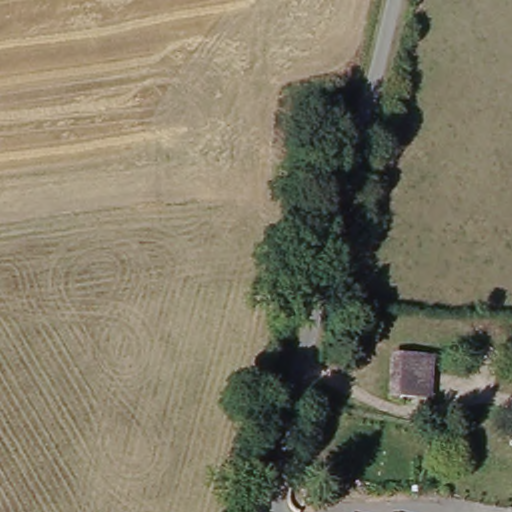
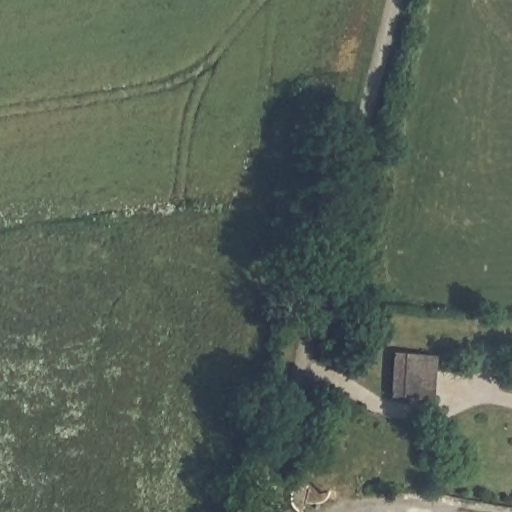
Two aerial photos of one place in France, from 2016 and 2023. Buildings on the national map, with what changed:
unchanged [(390,401),(393,358),(439,360),(437,405),(390,401)]

